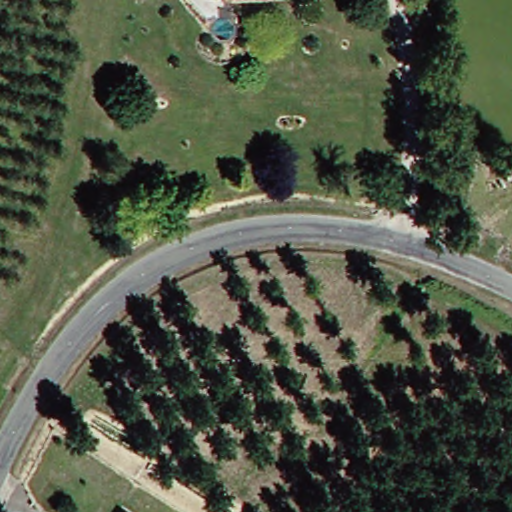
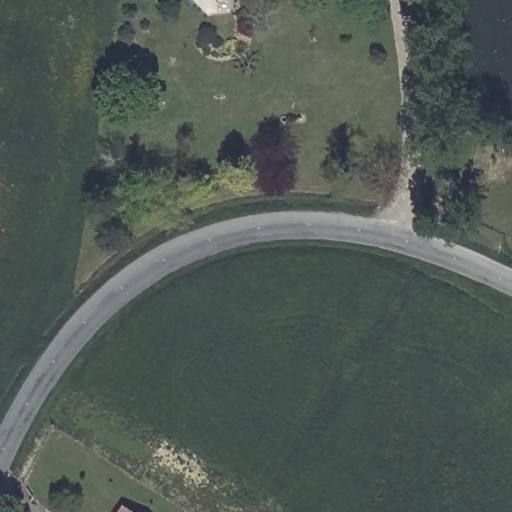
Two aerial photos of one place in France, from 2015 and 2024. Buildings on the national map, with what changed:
unchanged [(124,507),(131,512),(121,512),(124,507)]

